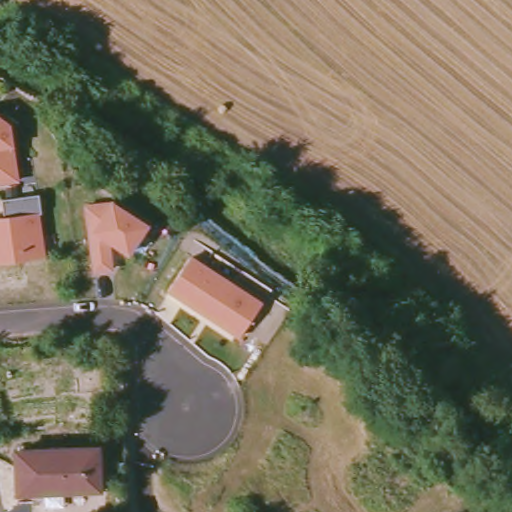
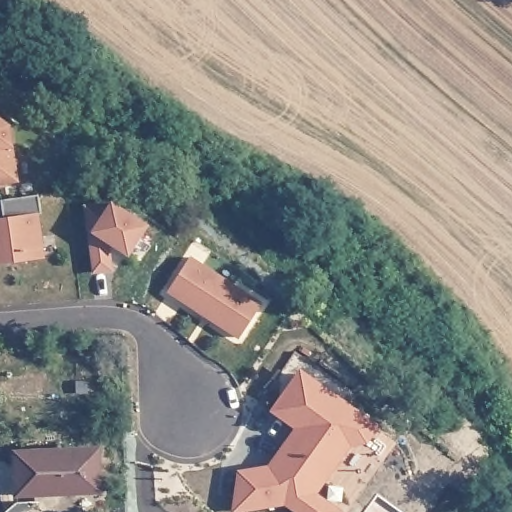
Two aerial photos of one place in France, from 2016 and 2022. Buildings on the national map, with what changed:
unchanged [(6,121),(15,177),(0,179),(0,117),(6,121)]
unchanged [(23,192),(30,191),(37,190),(40,209),(36,210),(43,254),(0,260),(0,214),(2,214),(0,203),(0,200),(0,196),(23,192)]
unchanged [(83,203),(112,200),(117,204),(145,224),(127,251),(118,245),(110,240),(107,240),(109,266),(90,268),(83,203)]
unchanged [(259,305),(235,338),(165,290),(190,256),(259,305)]
new [(379,424),(367,444),(352,445),(317,493),(342,511),(342,512),(295,512),(285,505),(236,512),(233,512),(236,470),(268,465),(292,427),(269,411),(300,369),(379,424)]
unchanged [(100,447),(102,492),(17,498),(13,455),(100,447)]

